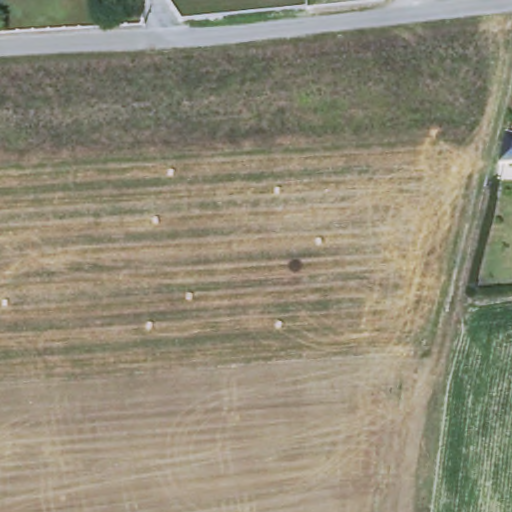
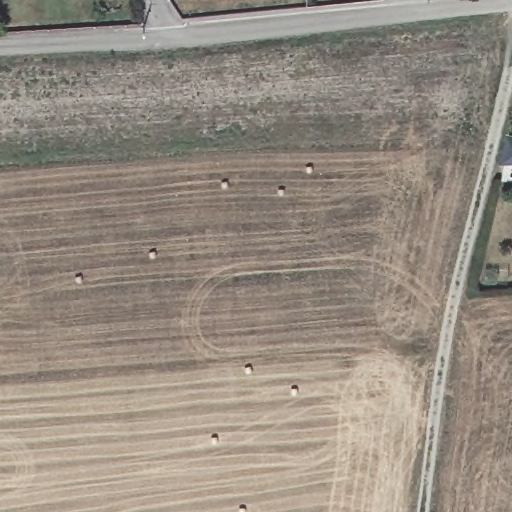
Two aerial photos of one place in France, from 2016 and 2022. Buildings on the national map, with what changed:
unchanged [(507,135),(512,136),(512,163),(500,164),(507,135)]

